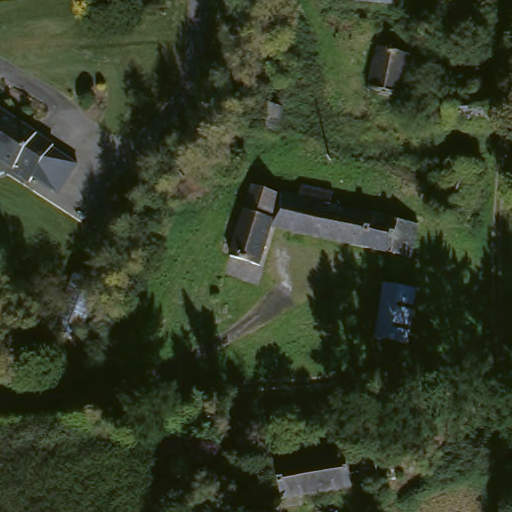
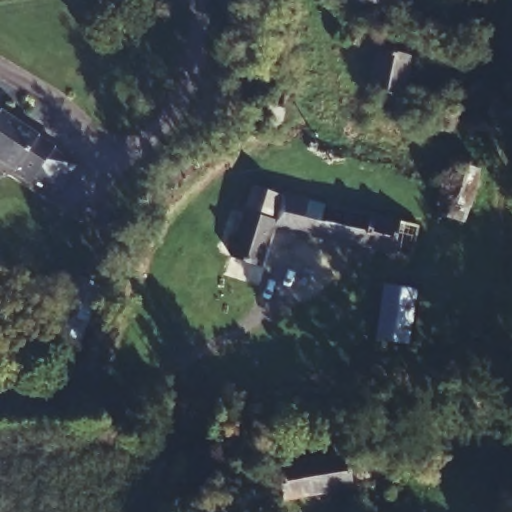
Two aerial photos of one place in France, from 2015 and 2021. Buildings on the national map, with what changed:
unchanged [(377,4),(365,0),(390,0),(389,5),(377,4)]
unchanged [(492,40),(441,33),(446,9),(496,11),(492,40)]
unchanged [(378,85),(386,47),(414,52),(404,90),(378,85)]
unchanged [(34,170),(29,177),(11,165),(12,163),(0,155),(0,105),(77,157),(59,186),(34,170)]
unchanged [(274,225),(265,261),(236,256),(249,186),(297,195),(301,184),(336,191),(334,204),(415,220),(409,250),(274,225)]
unchanged [(77,341),(53,330),(77,275),(101,285),(77,341)]
unchanged [(379,338),(391,287),(417,291),(408,340),(379,338)]
unchanged [(389,444),(394,477),(286,497),(279,462),(389,444)]
unchanged [(260,512),(230,512),(256,502),(260,512)]

